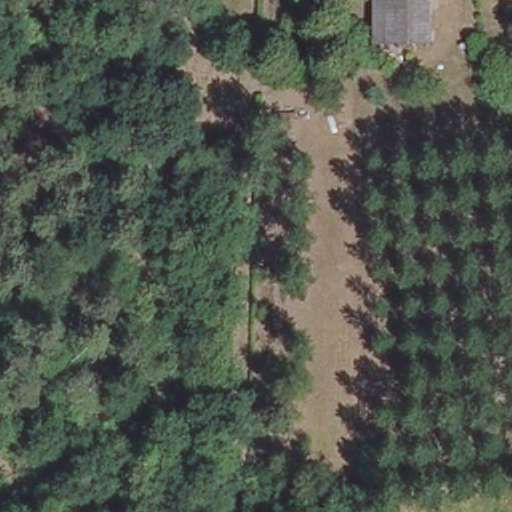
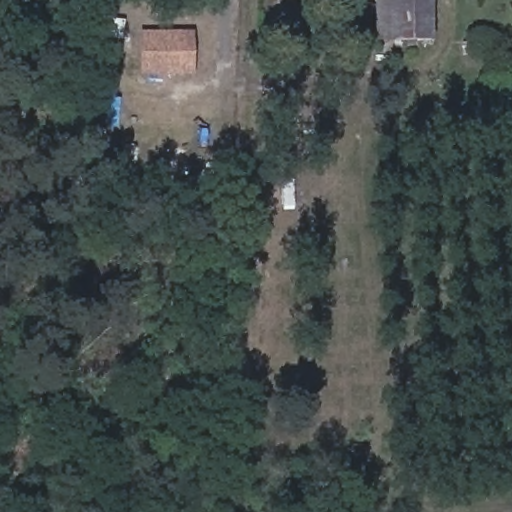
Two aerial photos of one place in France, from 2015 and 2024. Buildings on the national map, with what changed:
unchanged [(375,0),(430,0),(429,16),(375,16),(375,0)]
unchanged [(375,41),(375,16),(429,16),(429,42),(375,41)]
new [(140,76),(140,32),(193,32),(194,76),(140,76)]

